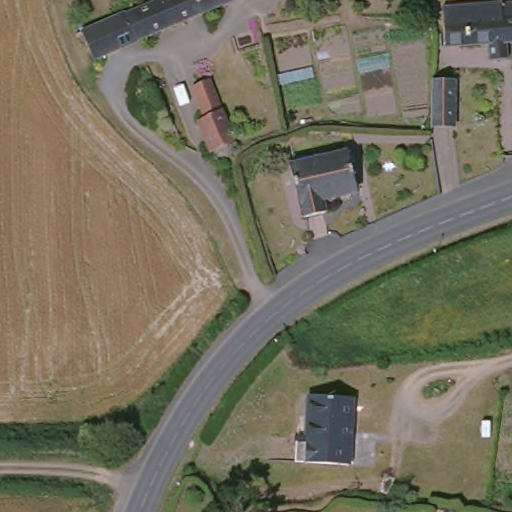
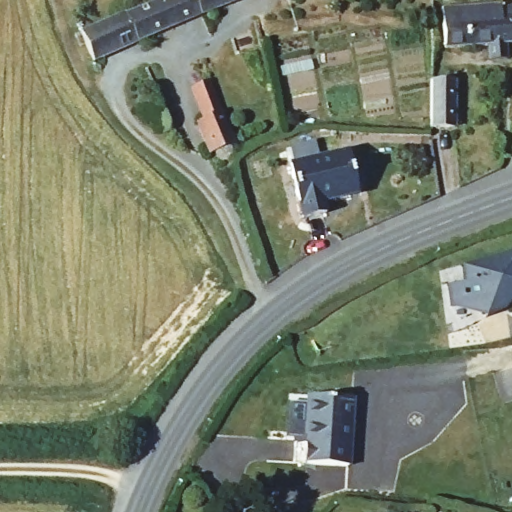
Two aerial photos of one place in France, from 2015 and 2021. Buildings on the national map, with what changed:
unchanged [(128,16),(164,2),(171,0),(246,0),(179,26),(89,65),(88,61),(76,34),(121,16),(123,17),(128,16)]
unchanged [(171,0),(164,2),(163,0),(171,0)]
unchanged [(490,70),(490,54),(446,57),(444,14),(512,12),(512,53),(509,53),(509,70),(490,70)]
unchanged [(196,129),(201,126),(186,86),(203,80),(231,154),(218,159),(208,162),(196,129)]
unchanged [(451,88),(450,131),(426,131),(427,87),(451,88)]
unchanged [(353,200),(320,207),(323,222),(298,227),(284,174),(341,161),(353,200)]
new [(464,281),(461,265),(512,251),(512,306),(489,316),(451,306),(449,283),(464,281)]
unchanged [(349,401),(348,467),(293,467),(294,441),(304,441),(306,400),(349,401)]

